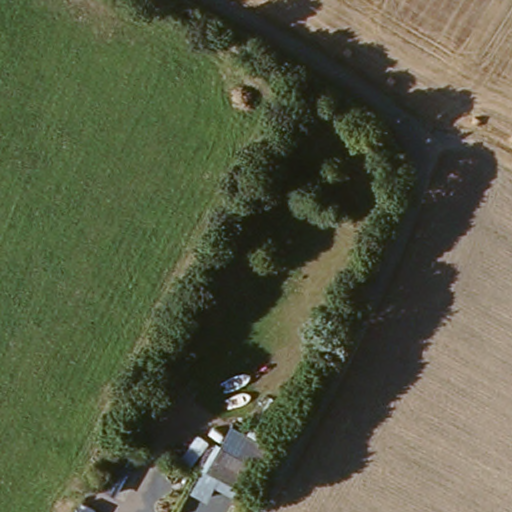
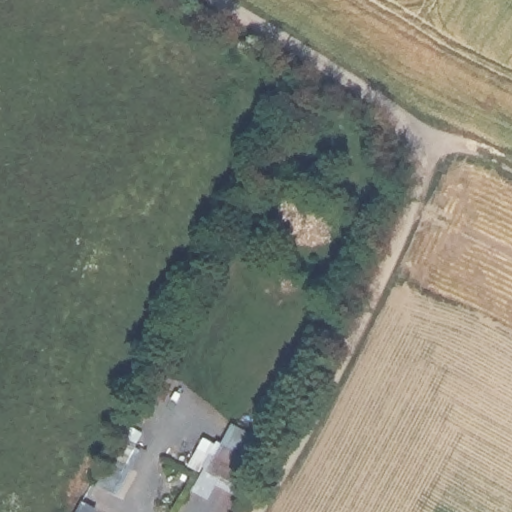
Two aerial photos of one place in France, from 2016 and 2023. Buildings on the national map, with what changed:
unchanged [(221,437),(238,445),(265,393),(284,400),(242,486),(209,469),(221,437)]
unchanged [(102,509),(100,512),(80,512),(86,502),(102,509)]

